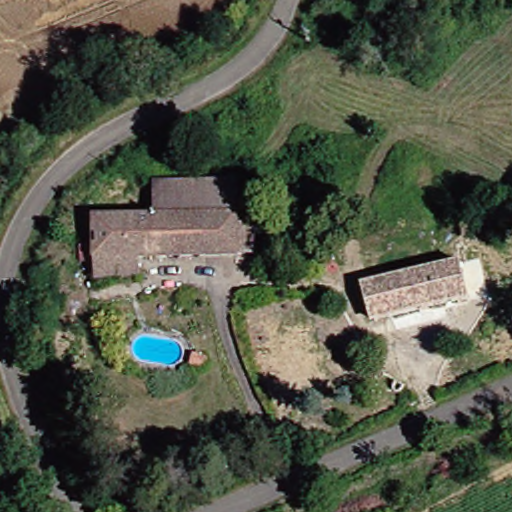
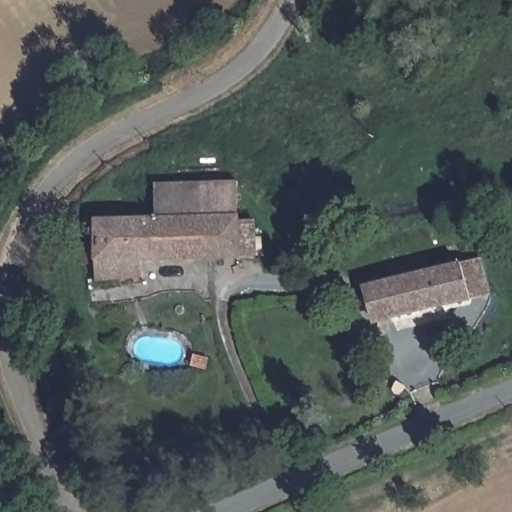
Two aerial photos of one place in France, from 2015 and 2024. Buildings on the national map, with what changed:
unchanged [(134,278),(108,278),(107,265),(92,267),(91,247),(105,247),(106,220),(166,217),(164,184),(242,181),(245,212),(250,212),(250,217),(267,219),(268,255),(252,256),(151,259),(151,278),(134,278)]
unchanged [(381,322),(372,284),(462,259),(473,297),(381,322)]

